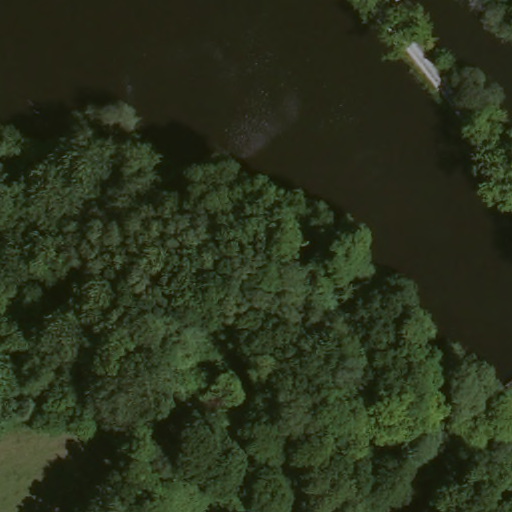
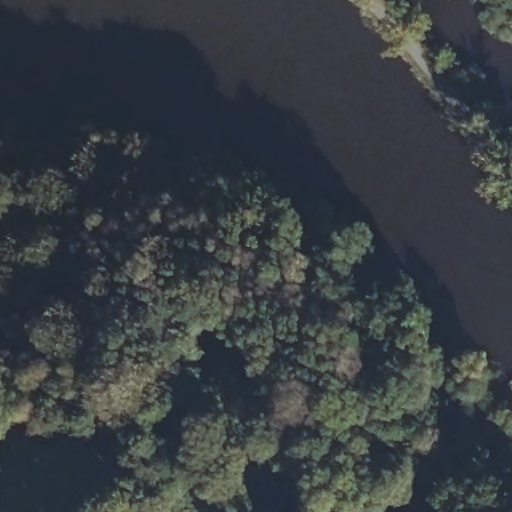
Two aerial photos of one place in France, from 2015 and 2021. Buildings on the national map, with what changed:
[]

